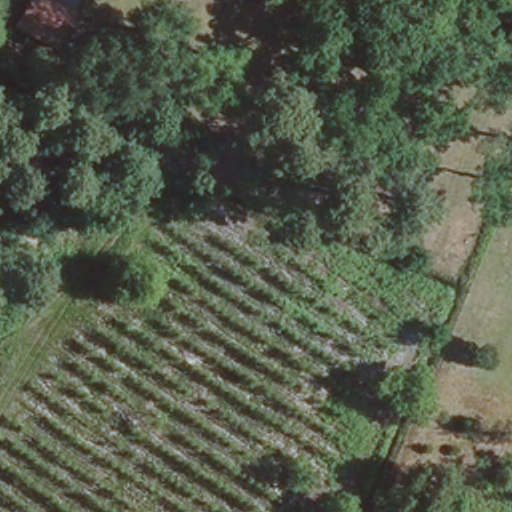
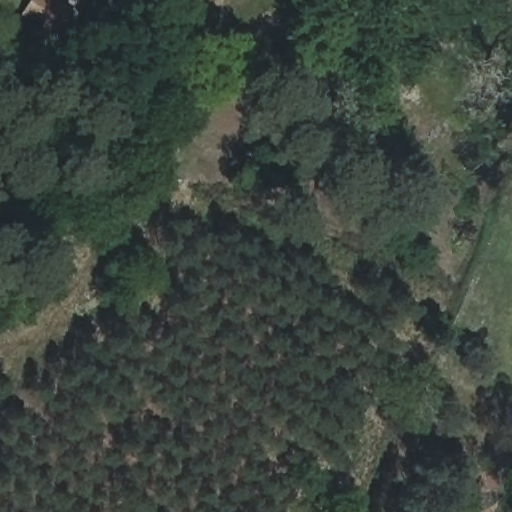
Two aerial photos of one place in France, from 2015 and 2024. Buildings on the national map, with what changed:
unchanged [(70,13),(56,39),(17,21),(30,0),(46,0),(70,13)]

